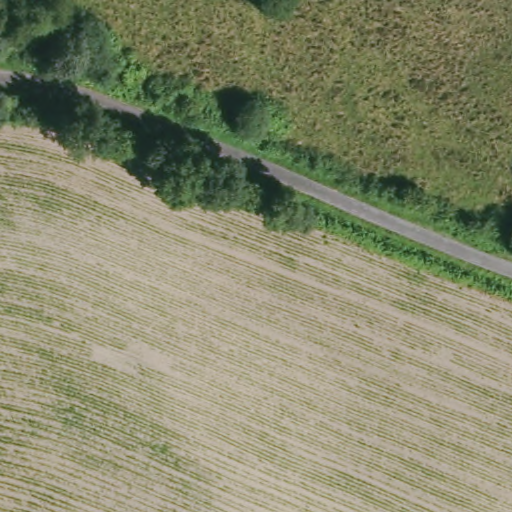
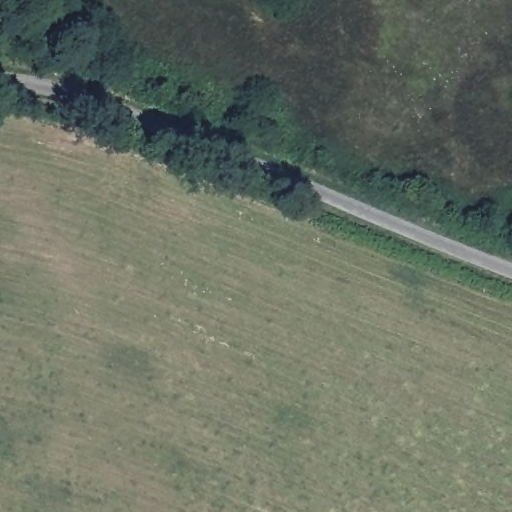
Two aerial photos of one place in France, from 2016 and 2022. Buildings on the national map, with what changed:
[]

